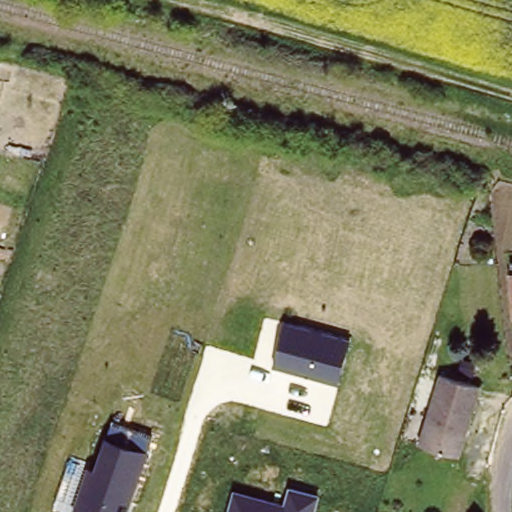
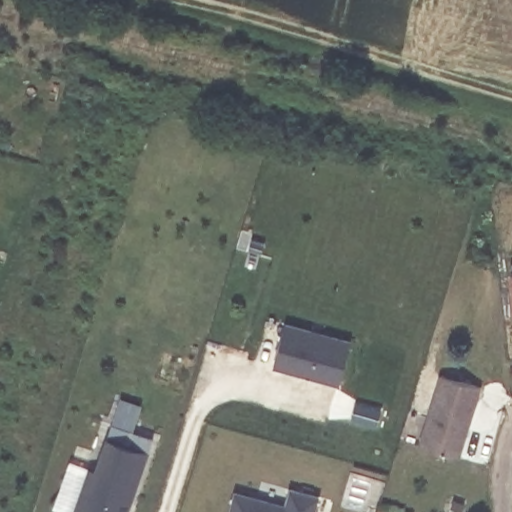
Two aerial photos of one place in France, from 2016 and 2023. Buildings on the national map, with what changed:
unchanged [(507,265),(512,264),(512,309),(507,265)]
unchanged [(350,340),(339,384),(273,365),(284,322),(350,340)]
unchanged [(481,386),(468,429),(464,428),(456,455),(419,444),(441,374),(481,386)]
unchanged [(97,465),(106,437),(151,452),(128,512),(74,512),(91,462),(97,465)]
unchanged [(288,486),(319,495),(315,512),(228,512),(234,490),(284,503),(288,486)]

